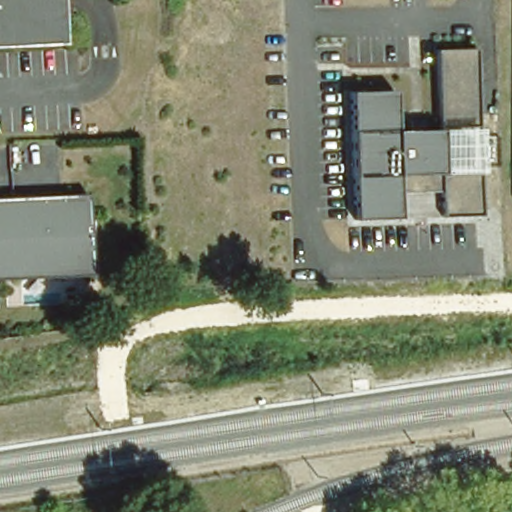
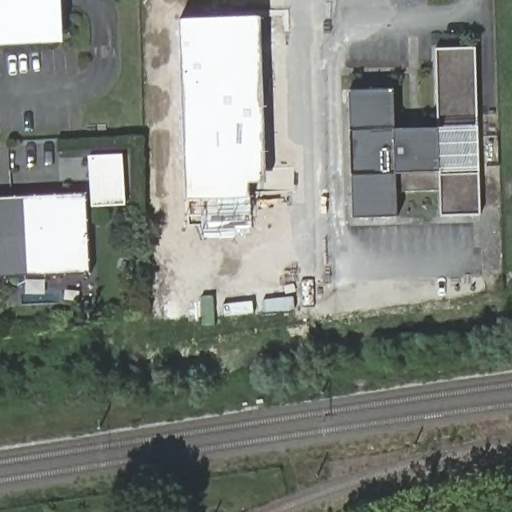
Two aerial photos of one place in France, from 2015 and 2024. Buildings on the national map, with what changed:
unchanged [(58,0),(59,47),(0,50),(0,0),(58,0)]
new [(250,185),(251,215),(185,217),(185,199),(179,21),(260,18),(265,185),(250,185)]
unchanged [(478,216),(438,217),(437,191),(394,192),(395,218),(350,220),(349,177),(347,131),(348,131),(347,91),(391,90),(392,130),(436,129),(433,49),(473,49),(478,216)]
new [(124,155),(128,204),(94,206),(91,156),(124,155)]
unchanged [(86,195),(90,275),(0,280),(0,199),(86,195)]

